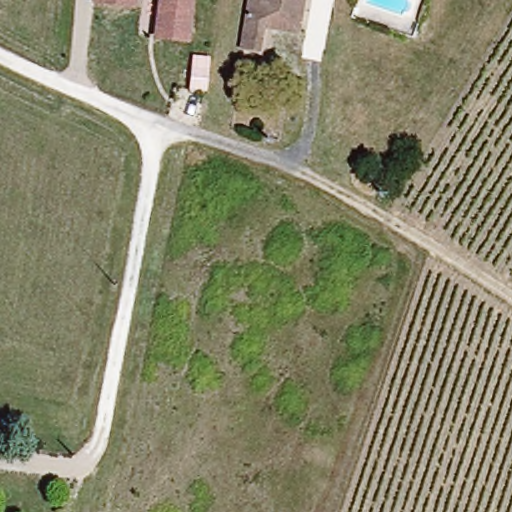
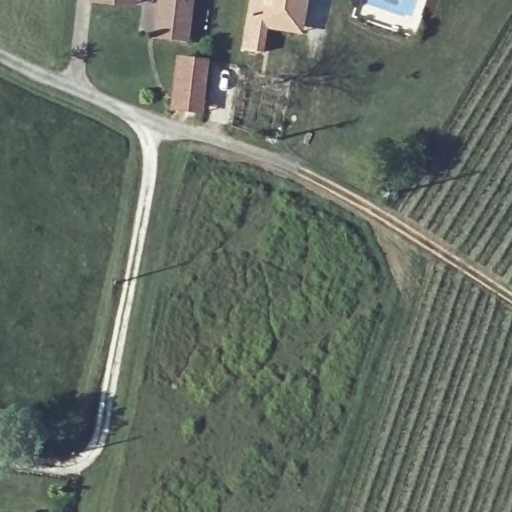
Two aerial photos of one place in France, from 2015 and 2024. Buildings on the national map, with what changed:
unchanged [(135,10),(91,5),(92,0),(136,0),(135,10)]
unchanged [(189,45),(152,39),(157,0),(195,0),(189,45)]
unchanged [(301,20),(247,11),(249,0),(305,0),(301,20)]
unchanged [(265,30),(259,54),(241,50),(247,11),(301,20),(300,35),(265,30)]
new [(179,62),(209,66),(208,72),(205,95),(202,117),(172,113),(175,91),(179,62)]

